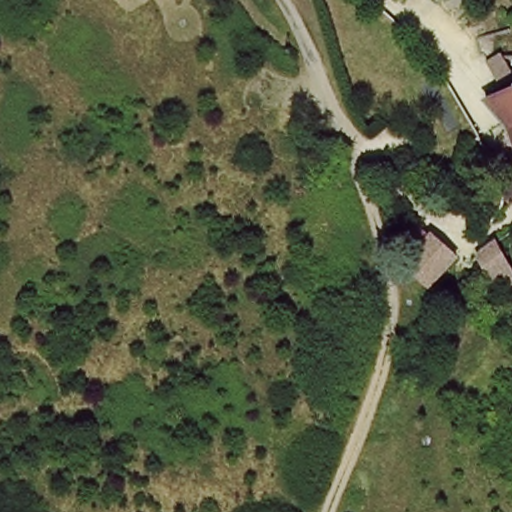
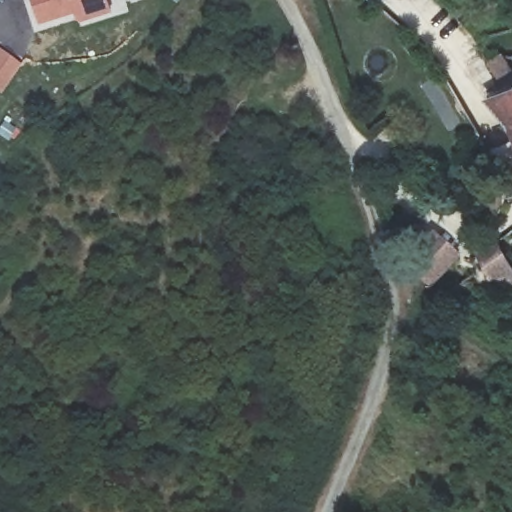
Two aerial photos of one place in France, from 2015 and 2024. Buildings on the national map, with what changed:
new [(113,12),(79,24),(75,14),(40,25),(32,0),(109,0),(113,12)]
new [(23,64),(1,95),(0,94),(0,48),(23,64)]
unchanged [(512,87),(512,121),(487,96),(512,87)]
unchanged [(435,238),(457,263),(430,288),(407,263),(435,238)]
unchanged [(496,240),(512,268),(493,279),(485,265),(478,251),(496,240)]

